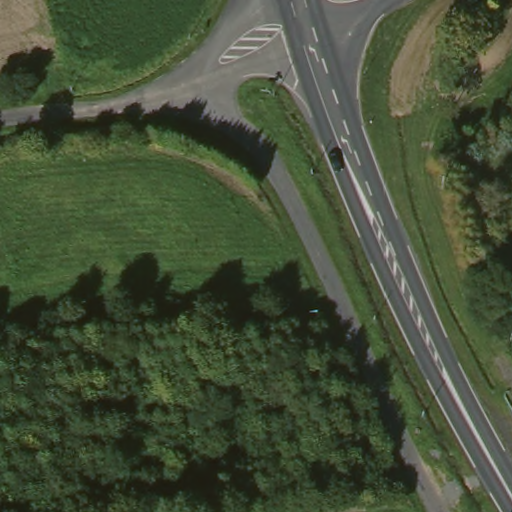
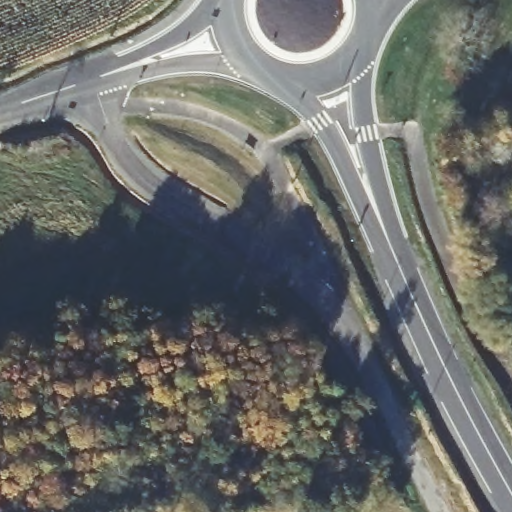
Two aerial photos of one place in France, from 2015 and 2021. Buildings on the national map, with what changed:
unchanged [(512,272),(512,282),(507,276),(512,272)]

